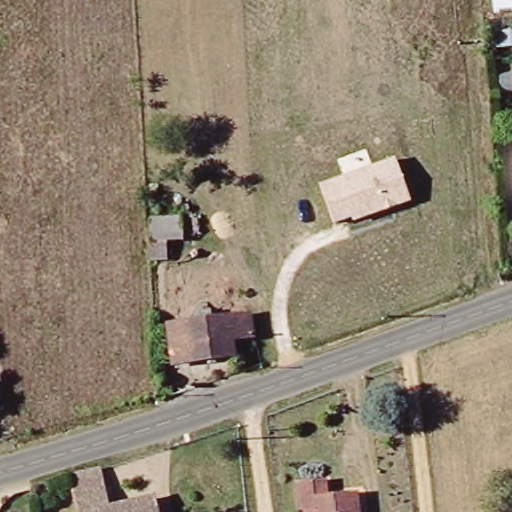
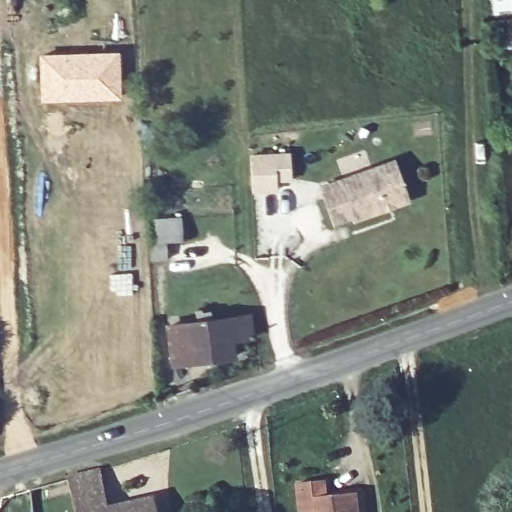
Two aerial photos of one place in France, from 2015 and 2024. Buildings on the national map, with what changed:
new [(120,50),(122,99),(40,101),(38,52),(120,50)]
new [(291,152),(293,182),(278,182),(278,192),(253,193),(251,154),(291,152)]
unchanged [(352,217),(333,224),(320,184),(396,157),(411,201),(354,222),(352,217)]
unchanged [(171,323),(229,315),(234,350),(176,358),(171,323)]
unchanged [(67,468),(95,460),(103,490),(106,505),(153,494),(157,512),(78,512),(74,496),(67,468)]
unchanged [(357,512),(315,512),(314,509),(299,511),(297,481),(353,476),(357,512)]

